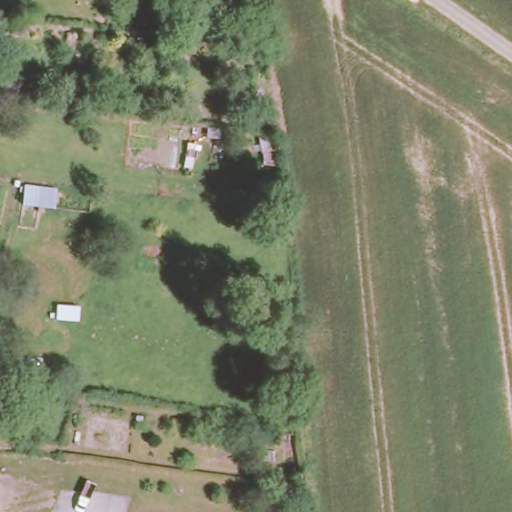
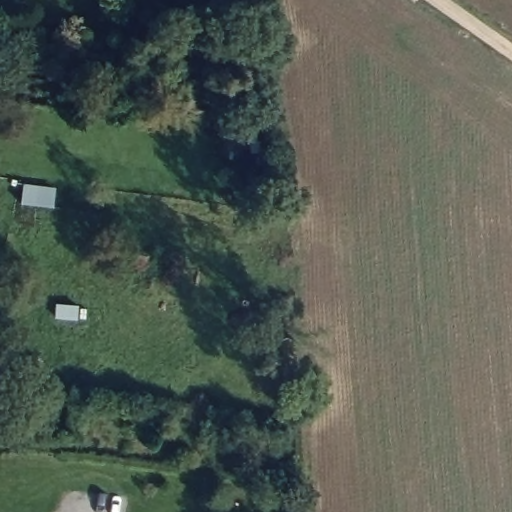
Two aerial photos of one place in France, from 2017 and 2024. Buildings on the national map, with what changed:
unchanged [(213,8),(210,28),(185,25),(188,5),(213,8)]
unchanged [(54,190),(52,208),(21,204),(24,186),(54,190)]

